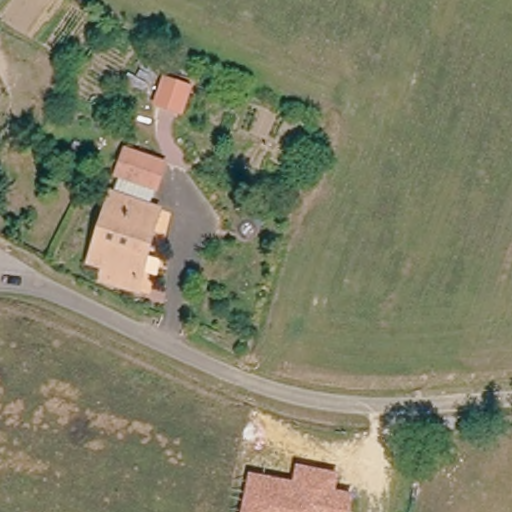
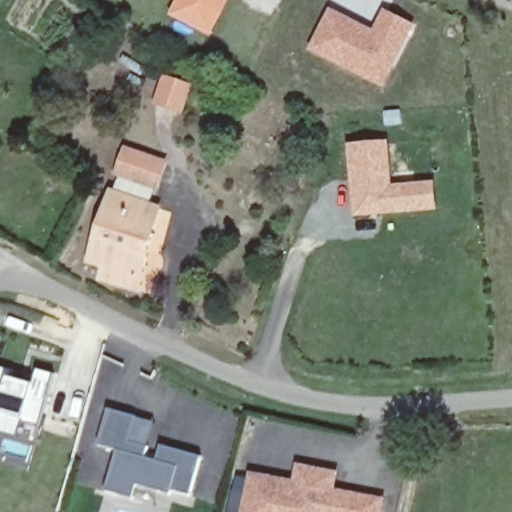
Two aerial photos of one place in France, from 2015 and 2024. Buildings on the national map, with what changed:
new [(166,16),(175,0),(229,0),(210,39),(166,16)]
new [(329,8),(372,29),(383,9),(415,25),(384,90),(308,51),(329,8)]
unchanged [(155,77),(189,86),(179,116),(143,111),(155,77)]
new [(388,140),(392,184),(435,181),(437,213),(350,220),(345,144),(388,140)]
unchanged [(157,161),(152,183),(114,172),(121,150),(157,161)]
unchanged [(160,208),(130,318),(95,306),(97,294),(86,290),(91,271),(89,270),(109,194),(160,208)]
new [(23,421),(24,418),(0,411),(0,369),(10,371),(8,379),(33,385),(38,371),(53,375),(39,426),(23,421)]
new [(108,409),(156,422),(145,457),(157,461),(162,445),(200,456),(190,493),(172,488),(171,493),(139,484),(134,498),(108,490),(119,449),(100,444),(108,409)]
unchanged [(292,479),(296,462),(340,471),(337,489),(355,494),(351,512),(240,512),(248,473),(292,479)]
new [(355,494),(386,501),(384,512),(351,512),(355,494)]

